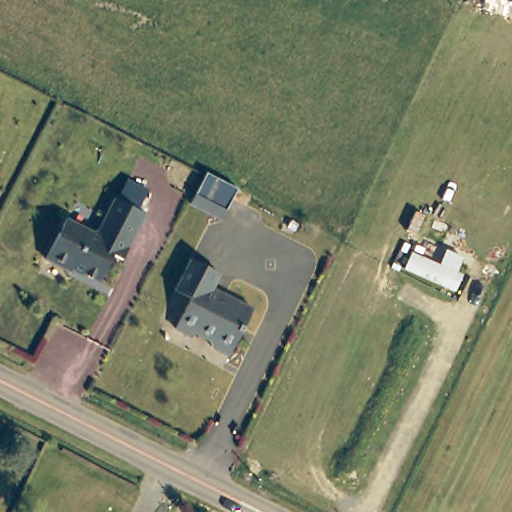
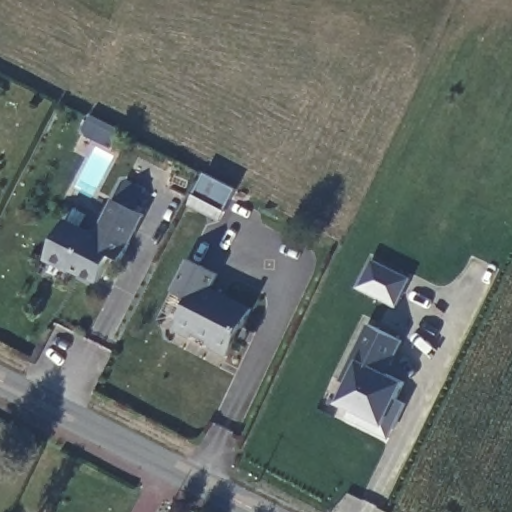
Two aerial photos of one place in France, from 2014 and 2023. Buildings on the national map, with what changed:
unchanged [(238,189),(221,220),(189,205),(207,173),(238,189)]
unchanged [(115,201),(127,178),(147,189),(135,211),(115,201)]
unchanged [(89,233),(94,231),(110,199),(143,214),(120,261),(110,256),(97,283),(71,271),(66,273),(43,261),(62,220),(89,233)]
new [(373,259),(412,278),(397,307),(359,287),(373,259)]
unchanged [(214,295),(255,315),(245,334),(242,332),(237,341),(241,343),(232,361),(215,353),(213,346),(214,340),(199,333),(194,343),(178,335),(193,304),(176,296),(192,265),(222,279),(214,295)]
new [(369,323),(404,341),(389,372),(407,382),(398,398),(408,404),(390,441),(347,420),(353,410),(339,402),(359,359),(353,356),(369,323)]

